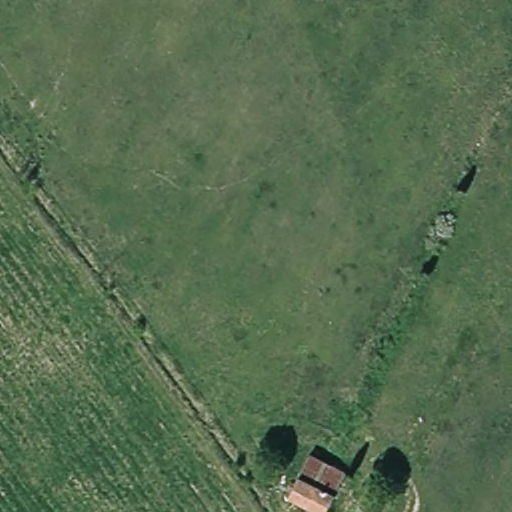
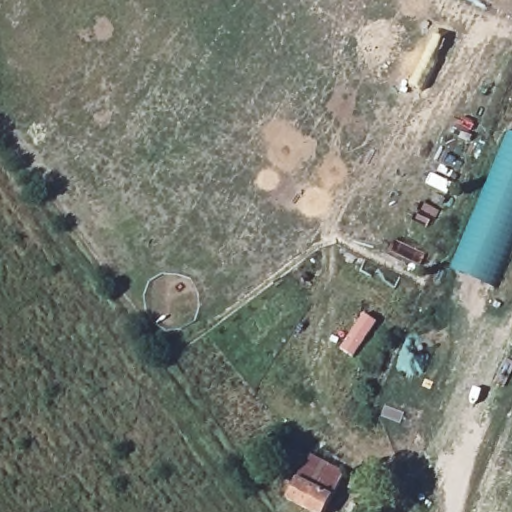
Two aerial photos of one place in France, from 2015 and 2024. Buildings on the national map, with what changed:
new [(453,271),(510,133),(512,134),(512,248),(495,289),(453,271)]
unchanged [(338,491),(328,512),(289,490),(299,469),(338,491)]

